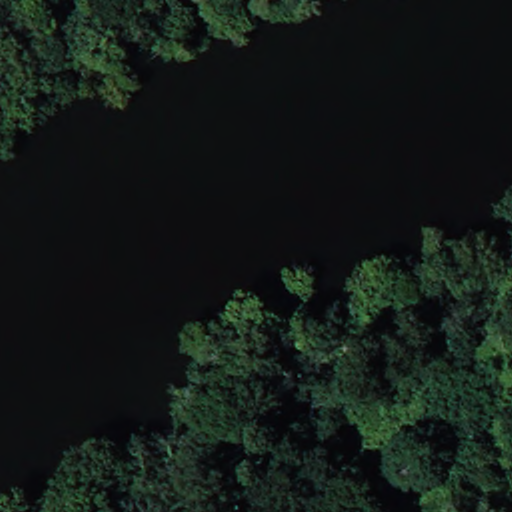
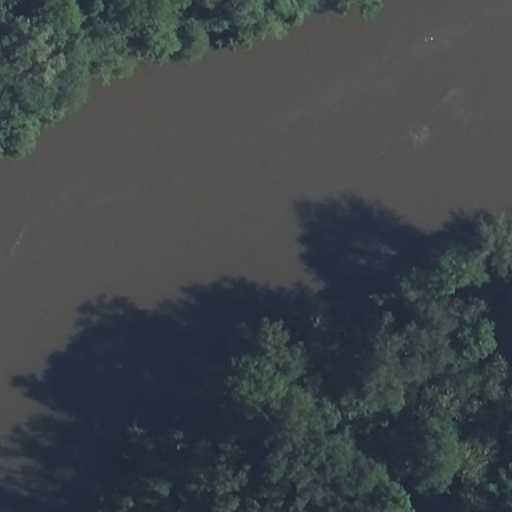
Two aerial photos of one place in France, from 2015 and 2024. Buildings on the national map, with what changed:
[]

